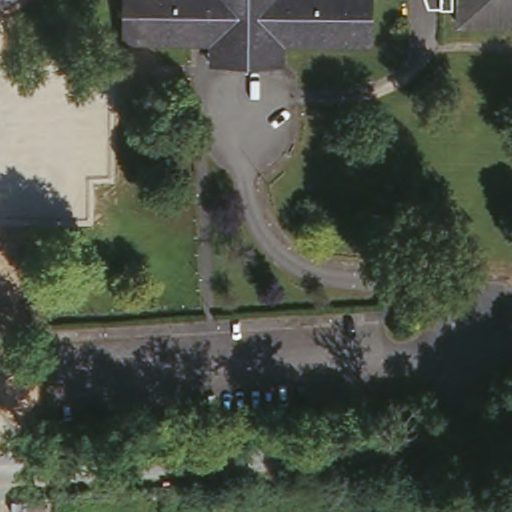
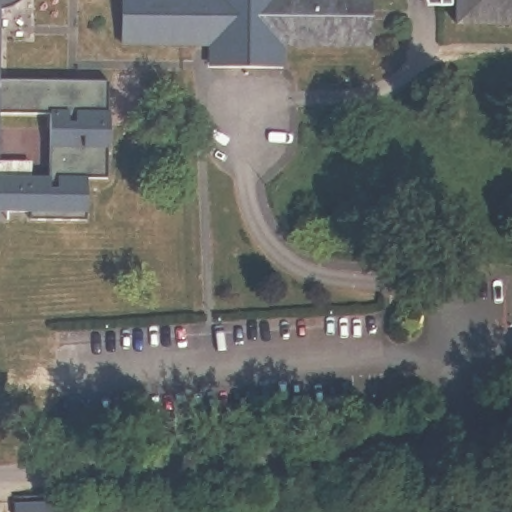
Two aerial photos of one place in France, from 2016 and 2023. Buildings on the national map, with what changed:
new [(11,2),(0,6),(0,0),(13,0),(11,2)]
unchanged [(373,42),(287,42),(285,65),(208,62),(209,44),(118,44),(118,0),(374,0),(373,42)]
unchanged [(452,22),(452,0),(512,0),(512,22),(452,22)]
new [(104,177),(86,177),(85,217),(0,214),(0,181),(47,182),(47,122),(0,121),(0,78),(104,81),(104,177)]
new [(46,512),(14,512),(14,497),(45,497),(46,512)]

